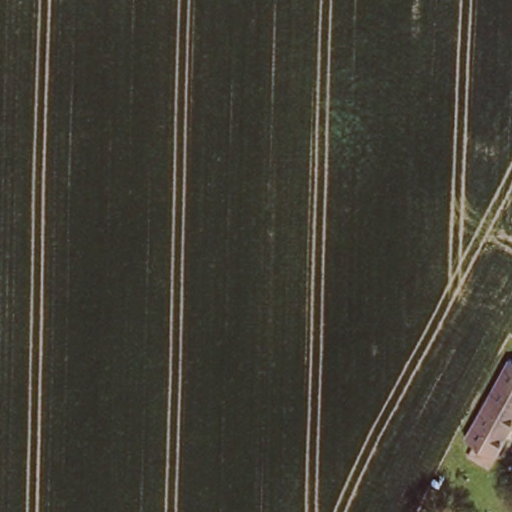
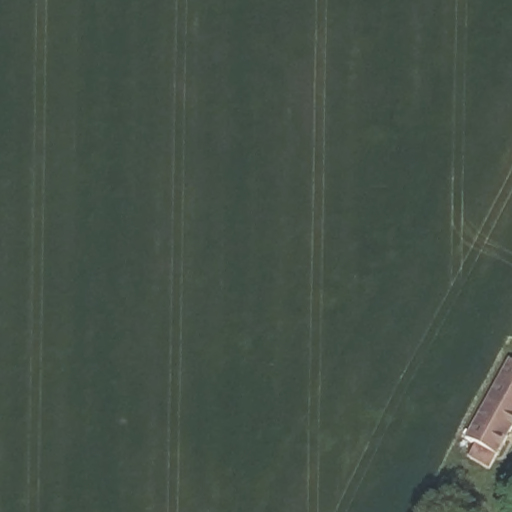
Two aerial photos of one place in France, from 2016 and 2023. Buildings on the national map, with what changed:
unchanged [(512,359),(512,422),(487,465),(467,453),(472,442),(465,437),(507,357),(512,359)]

